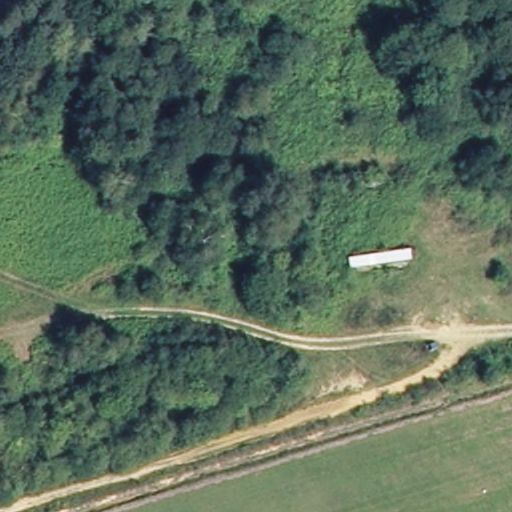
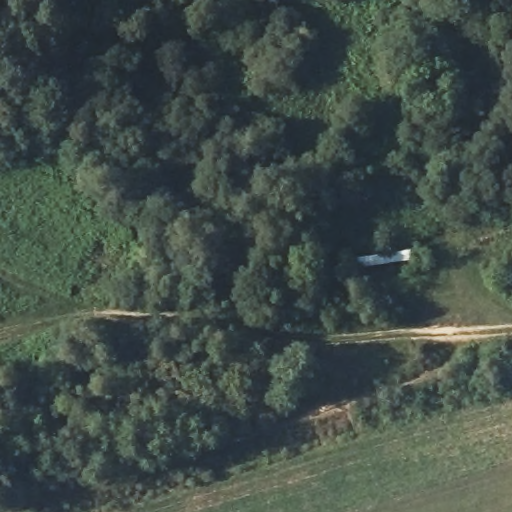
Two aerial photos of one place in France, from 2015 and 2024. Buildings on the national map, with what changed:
unchanged [(346,280),(341,256),(405,249),(412,271),(346,280)]

